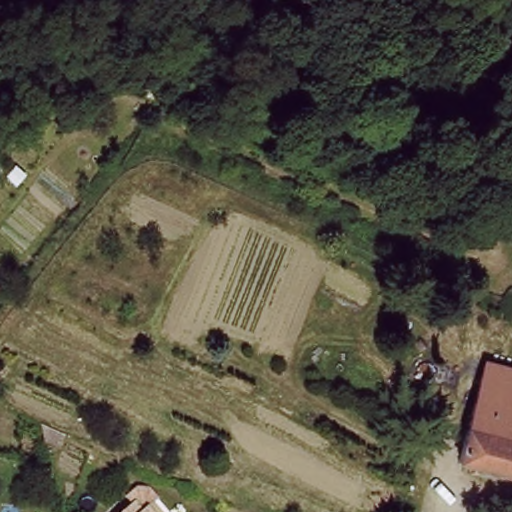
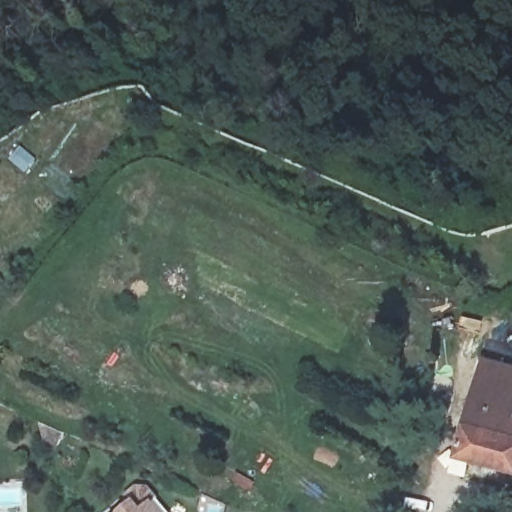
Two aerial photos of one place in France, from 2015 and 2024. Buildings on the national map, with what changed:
unchanged [(512,368),(512,476),(457,464),(485,360),(512,368)]
unchanged [(143,510),(151,504),(157,512),(123,512),(136,501),(143,510)]

